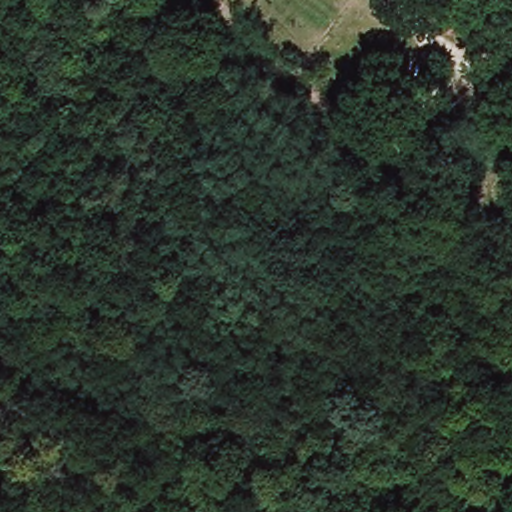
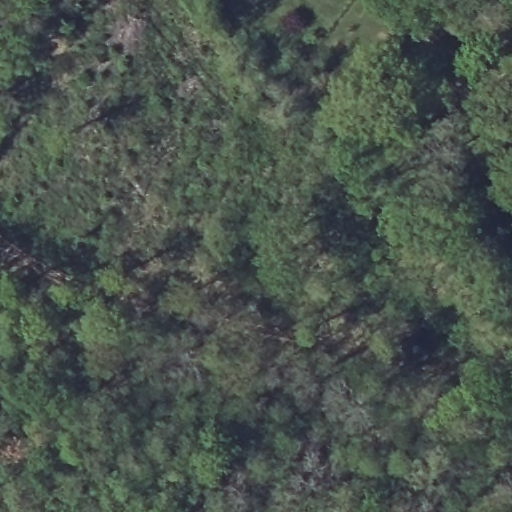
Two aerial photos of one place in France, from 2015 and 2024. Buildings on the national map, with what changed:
unchanged [(490,11),(488,19),(504,24),(500,35),(462,24),(466,5),(490,11)]

